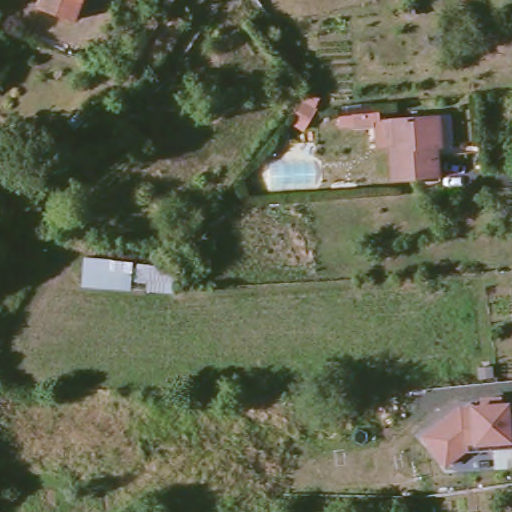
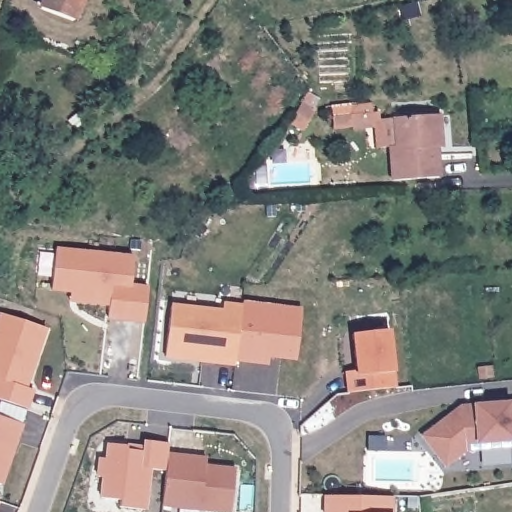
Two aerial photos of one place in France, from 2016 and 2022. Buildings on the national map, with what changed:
unchanged [(40,0),(81,0),(74,20),(37,7),(40,0)]
unchanged [(166,0),(173,0),(170,4),(166,0)]
unchanged [(388,140),(395,140),(396,114),(439,114),(439,146),(434,145),(434,177),(387,178),(388,140)]
new [(108,316),(109,303),(77,299),(78,290),(52,287),(57,247),(134,256),(130,284),(148,286),(144,320),(108,316)]
demolished [(177,262),(174,293),(75,288),(79,257),(177,262)]
new [(70,298),(71,289),(78,290),(77,299),(70,298)]
new [(242,304),(245,300),(302,307),(297,360),(271,358),(268,364),(236,359),(242,304)]
new [(166,355),(172,304),(222,310),(224,302),(242,304),(235,363),(217,361),(205,359),(166,355)]
new [(26,388),(32,390),(27,408),(0,396),(0,326),(4,315),(46,329),(26,388)]
new [(395,386),(347,391),(346,371),(357,370),(352,333),(389,329),(395,386)]
unchanged [(512,402),(512,439),(466,444),(466,450),(449,468),(422,443),(455,408),(512,402)]
new [(14,443),(12,451),(1,484),(0,483),(0,416),(21,423),(14,443)]
new [(127,439),(126,443),(144,445),(144,441),(168,444),(165,470),(149,469),(145,510),(120,507),(121,500),(101,498),(103,477),(97,477),(100,458),(106,458),(108,440),(111,437),(127,439)]
new [(162,505),(167,454),(184,455),(205,458),(205,465),(183,463),(235,469),(230,512),(225,512),(162,505)]
new [(325,493),(391,491),(391,512),(325,512),(325,493)]

